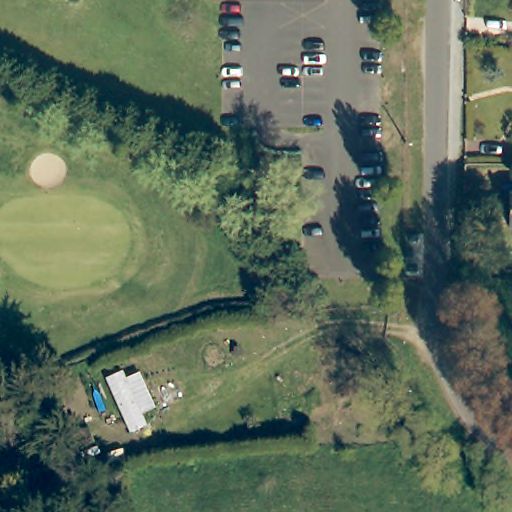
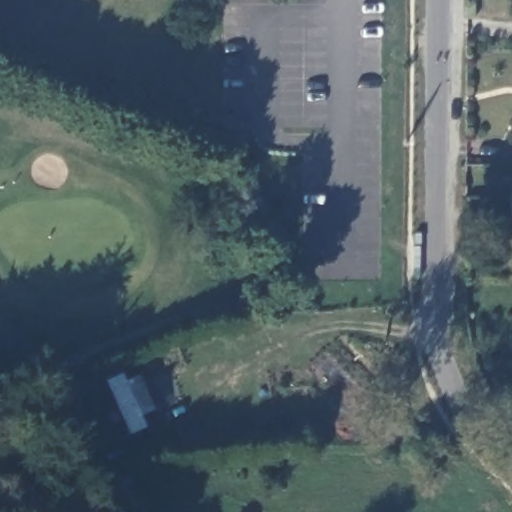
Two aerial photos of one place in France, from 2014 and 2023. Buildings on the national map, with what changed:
unchanged [(508,231),(509,223),(510,194),(512,195),(512,231),(508,231)]
unchanged [(102,378),(116,368),(122,375),(134,371),(150,405),(138,411),(145,423),(123,430),(102,378)]

